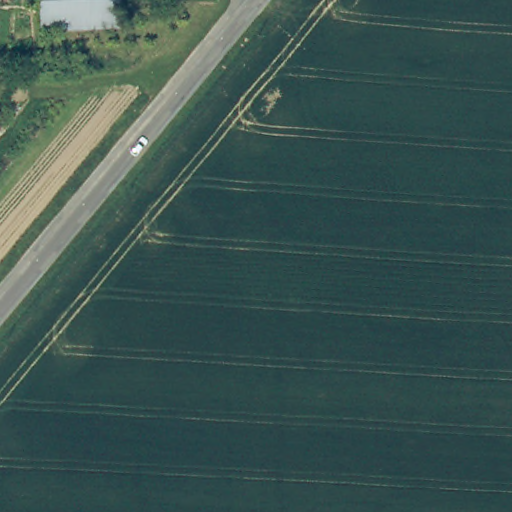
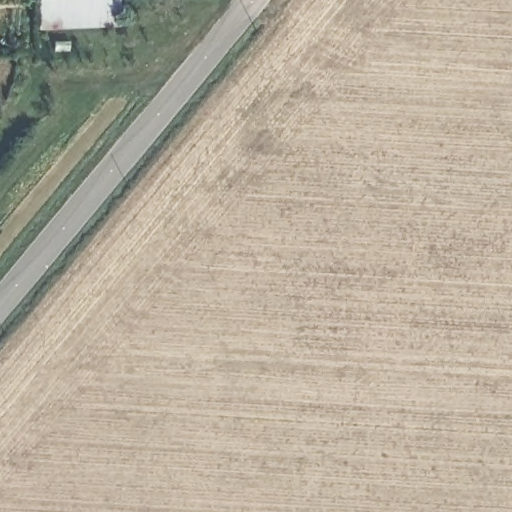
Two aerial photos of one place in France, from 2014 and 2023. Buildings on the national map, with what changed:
unchanged [(84,20),(37,20),(36,0),(84,0),(84,20)]
unchanged [(120,34),(37,36),(37,20),(84,20),(84,0),(121,0),(120,34)]

